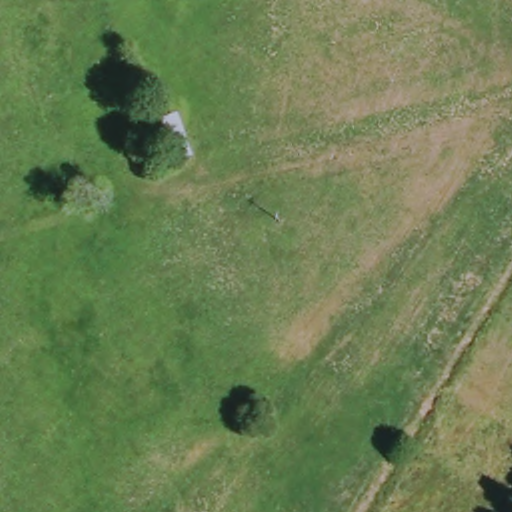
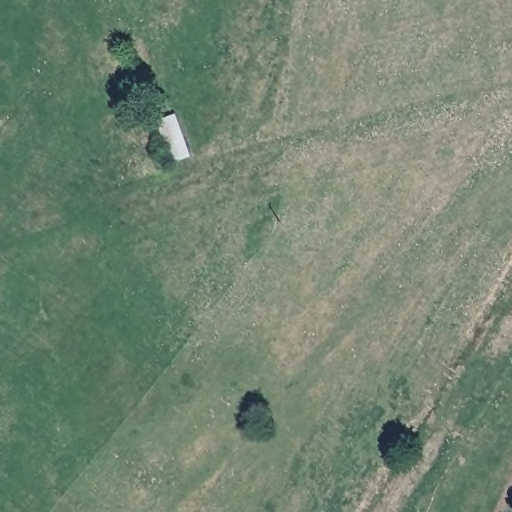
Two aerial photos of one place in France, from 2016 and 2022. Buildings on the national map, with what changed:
unchanged [(175,169),(162,127),(179,121),(193,162),(175,169)]

